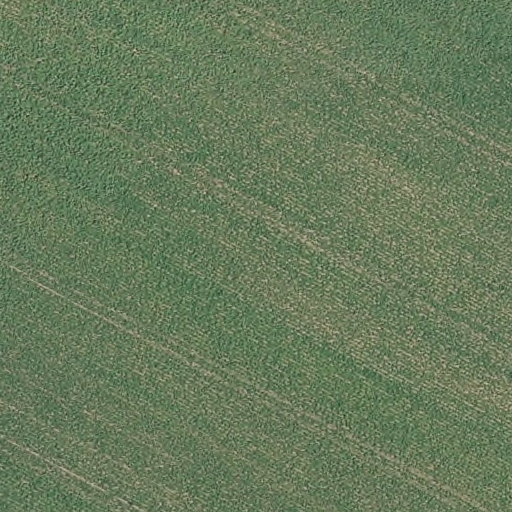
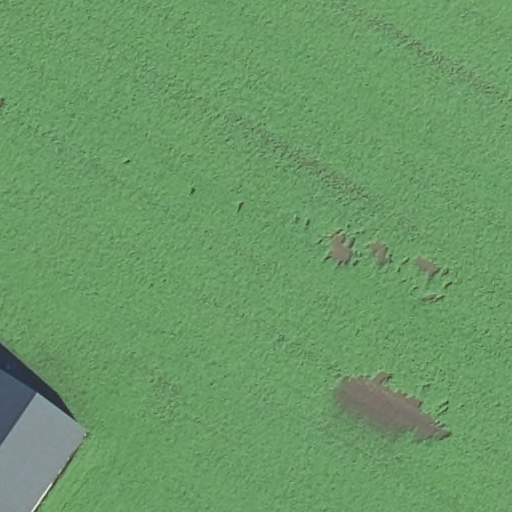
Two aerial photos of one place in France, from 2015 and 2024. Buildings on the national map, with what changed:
new [(0,512),(0,375),(87,436),(34,512),(0,512)]

